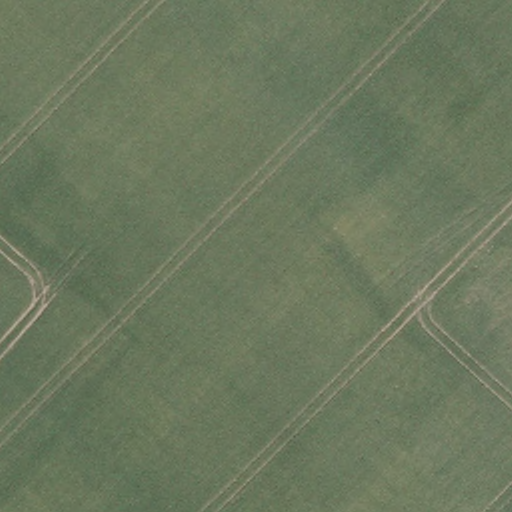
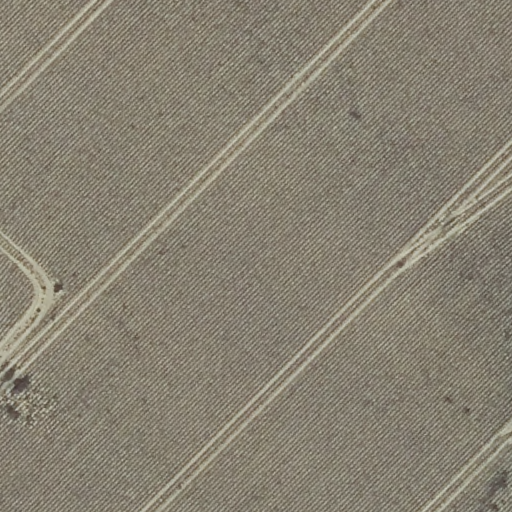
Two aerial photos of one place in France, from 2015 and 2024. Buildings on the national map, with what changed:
[]

